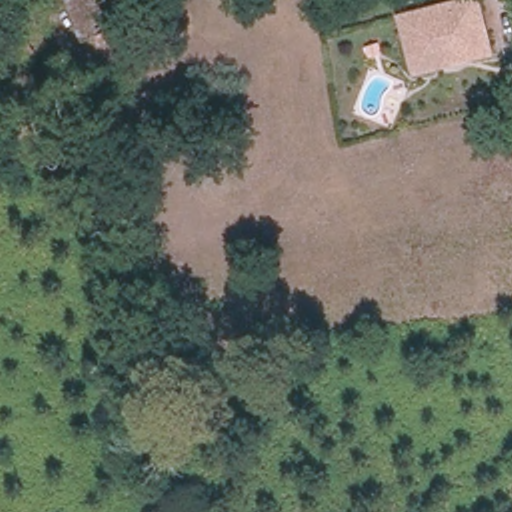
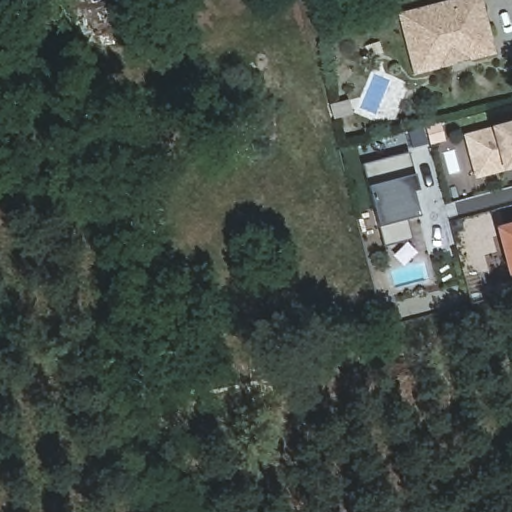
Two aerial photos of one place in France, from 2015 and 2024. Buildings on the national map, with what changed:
unchanged [(417,71),(402,14),(408,13),(420,56),(485,39),(475,0),(481,0),(495,51),(417,71)]
unchanged [(420,56),(408,13),(458,0),(475,0),(485,39),(420,56)]
new [(476,178),(463,134),(512,121),(512,169),(476,178)]
new [(363,164),(410,152),(416,175),(410,177),(420,216),(408,219),(414,239),(383,246),(363,164)]
new [(509,276),(496,227),(512,223),(512,276),(509,276)]

